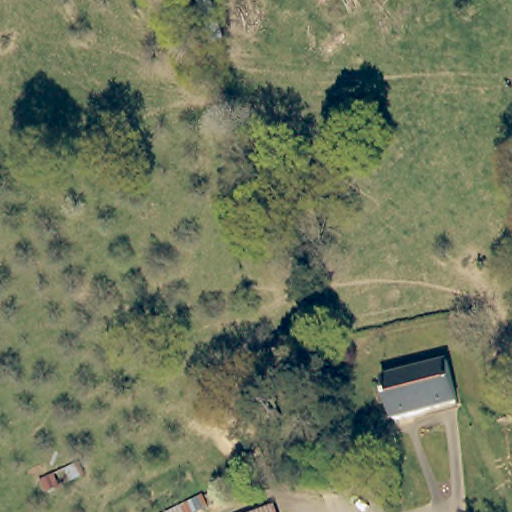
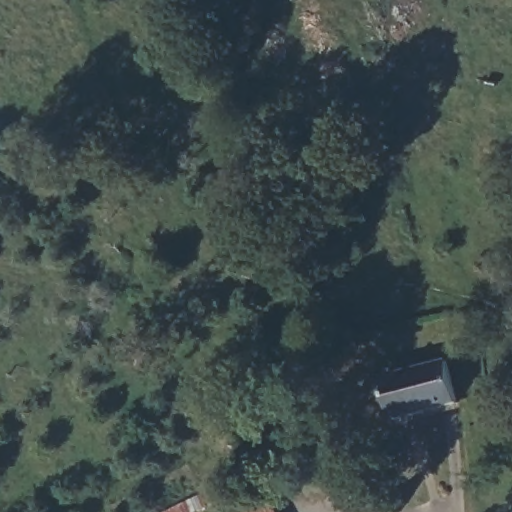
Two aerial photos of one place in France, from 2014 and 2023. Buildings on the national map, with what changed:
unchanged [(448,361),(458,402),(394,419),(383,377),(448,361)]
unchanged [(274,508),(275,512),(265,512),(274,508)]

